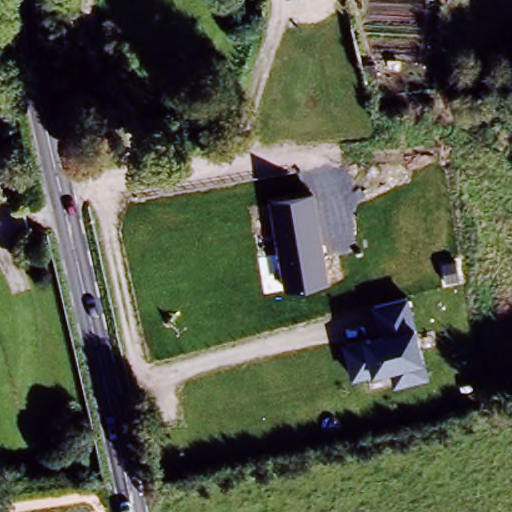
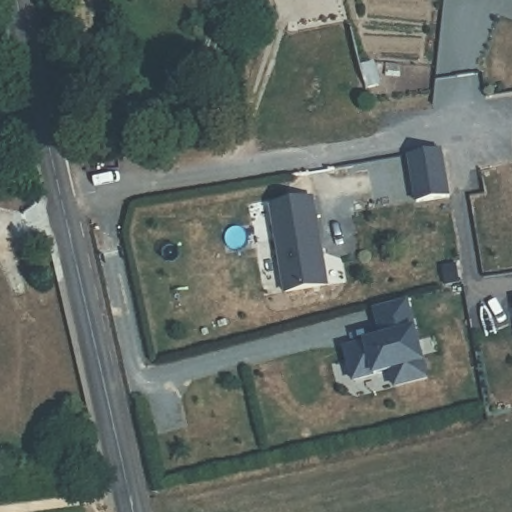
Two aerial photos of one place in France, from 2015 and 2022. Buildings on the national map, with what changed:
new [(432,145),(437,171),(441,193),(419,198),(411,149),(432,145)]
unchanged [(315,197),(329,287),(283,294),(269,203),(315,197)]
unchanged [(409,299),(429,380),(393,388),(391,374),(373,379),(373,375),(352,382),(345,346),(379,338),(376,306),(409,299)]

